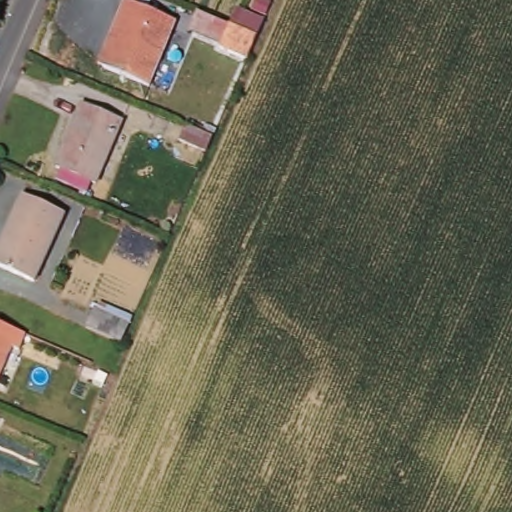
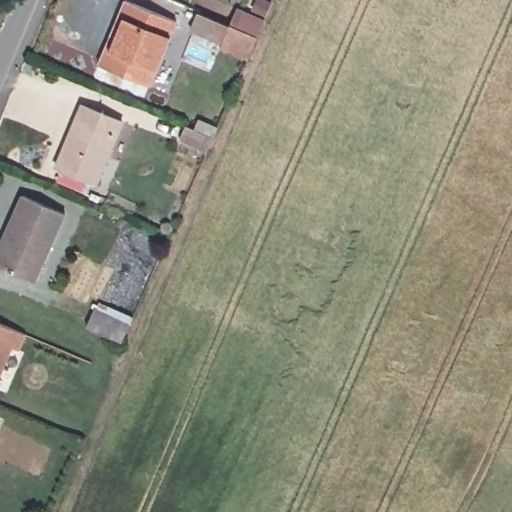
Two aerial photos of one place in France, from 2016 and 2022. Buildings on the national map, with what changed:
unchanged [(176,22),(150,85),(99,64),(126,0),(127,0),(176,22)]
unchanged [(215,48),(225,25),(251,37),(245,52),(241,61),(215,48)]
unchanged [(121,121),(95,182),(57,165),(83,104),(121,121)]
unchanged [(206,150),(179,138),(185,123),(213,136),(206,150)]
unchanged [(24,195),(65,214),(53,237),(25,222),(14,217),(24,195)]
unchanged [(33,279),(0,263),(0,243),(14,217),(25,222),(53,237),(33,279)]
unchanged [(125,340),(119,337),(117,337),(91,325),(100,304),(134,318),(125,340)]
unchanged [(19,355),(3,394),(0,393),(0,322),(37,338),(29,359),(19,355)]

